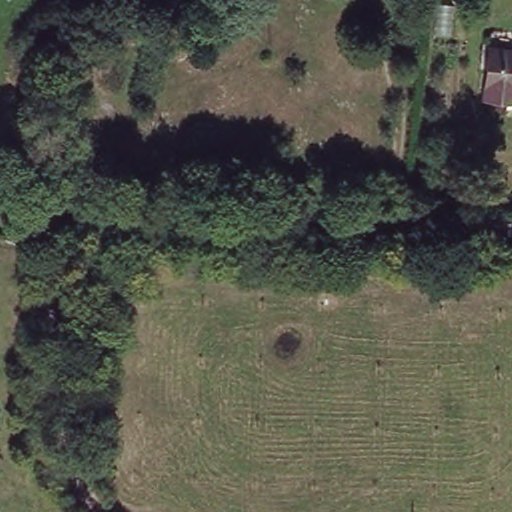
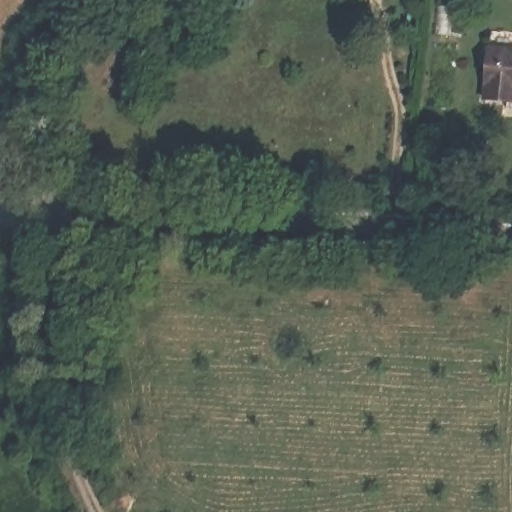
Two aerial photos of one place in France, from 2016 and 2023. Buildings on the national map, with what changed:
unchanged [(135,8),(144,0),(157,0),(163,9),(146,25),(142,29),(128,14),(135,8)]
unchanged [(486,102),(491,45),(512,46),(512,105),(510,105),(486,102)]

